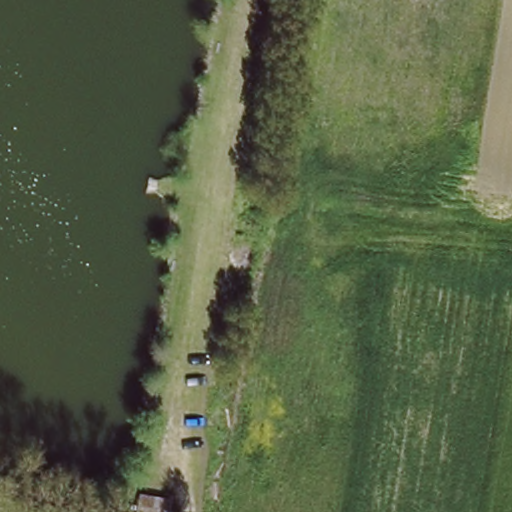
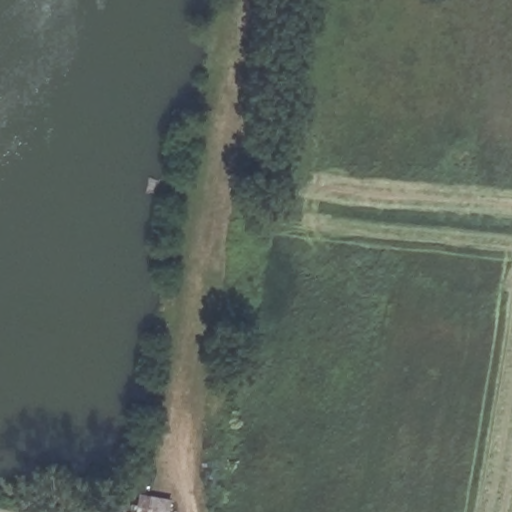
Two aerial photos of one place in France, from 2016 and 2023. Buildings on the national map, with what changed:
unchanged [(140,495),(169,498),(167,512),(137,512),(140,495)]

